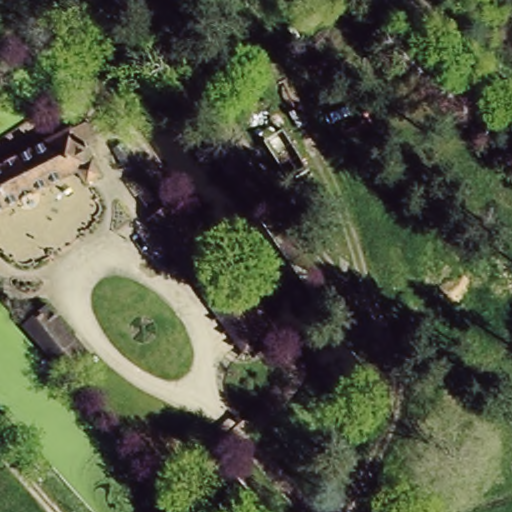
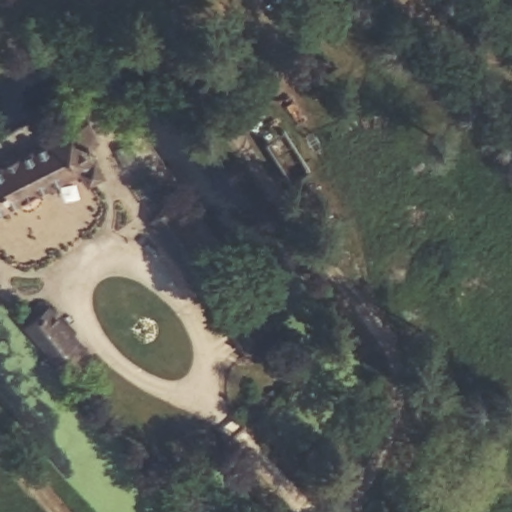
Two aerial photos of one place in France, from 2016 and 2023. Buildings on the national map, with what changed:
unchanged [(91,135),(78,143),(95,170),(77,180),(71,169),(0,210),(0,163),(80,116),(91,135)]
unchanged [(284,125),(300,173),(281,178),(263,139),(284,125)]
unchanged [(149,227),(171,209),(268,332),(248,348),(149,227)]
unchanged [(28,325),(52,305),(88,348),(65,369),(28,325)]

